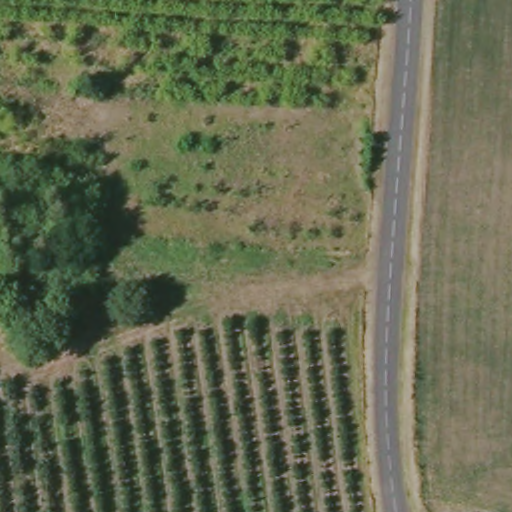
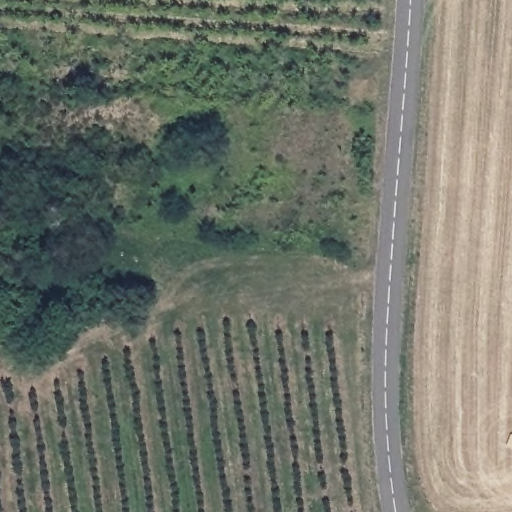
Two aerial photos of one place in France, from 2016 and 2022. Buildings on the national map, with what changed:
unchanged [(47,260),(52,241),(67,244),(63,263),(47,260)]

